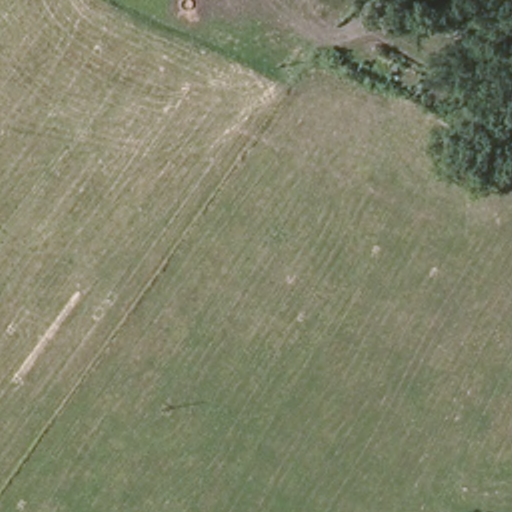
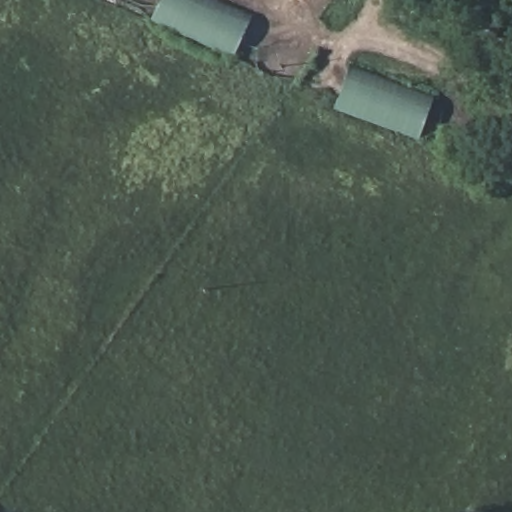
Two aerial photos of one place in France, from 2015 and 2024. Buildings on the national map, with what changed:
new [(252,16),(234,56),(149,20),(159,0),(213,0),(252,16)]
new [(351,67),(434,99),(418,139),(333,110),(351,67)]

